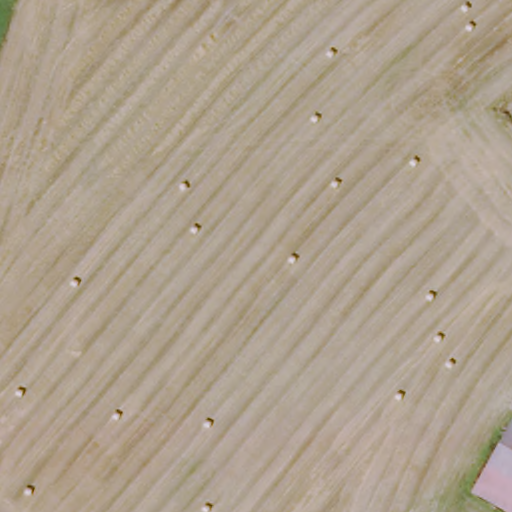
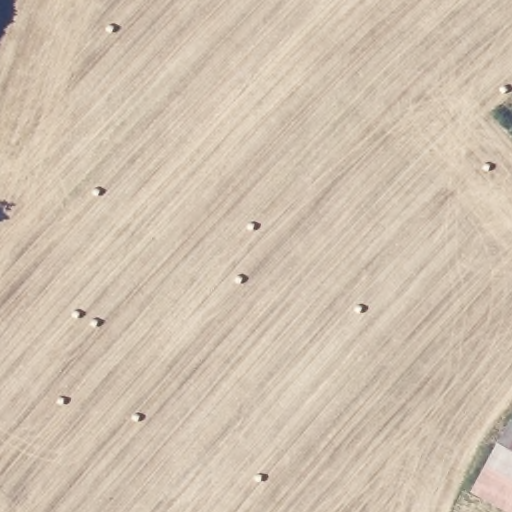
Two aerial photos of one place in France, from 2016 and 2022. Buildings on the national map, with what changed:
unchanged [(509,423),(512,425),(512,512),(508,512),(470,493),(509,423)]

